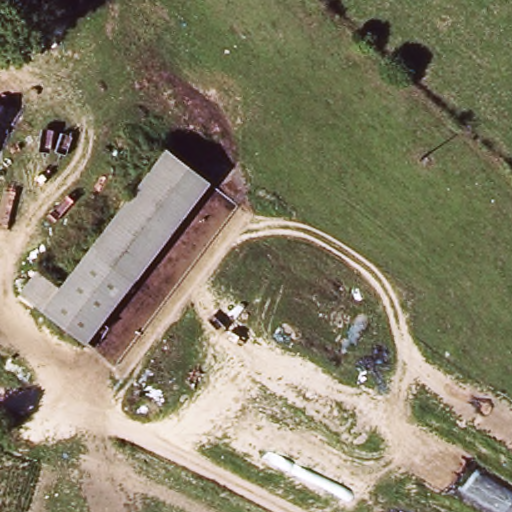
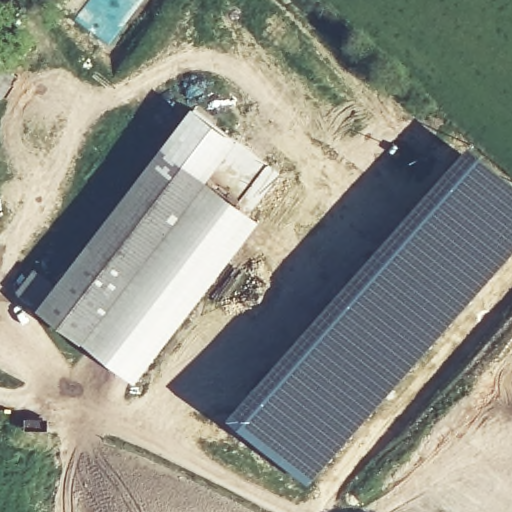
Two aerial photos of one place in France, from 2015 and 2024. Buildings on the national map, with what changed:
new [(471,143),(512,180),(512,255),(411,371),(311,482),(278,453),(230,415),(450,166),(471,143)]
unchanged [(58,286),(163,149),(208,182),(84,344),(41,309),(18,292),(35,268),(58,286)]

